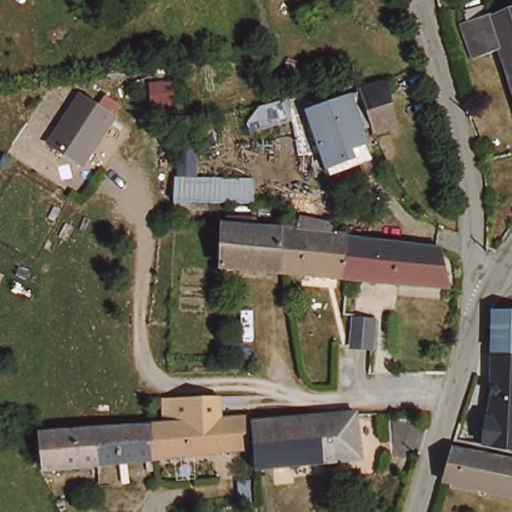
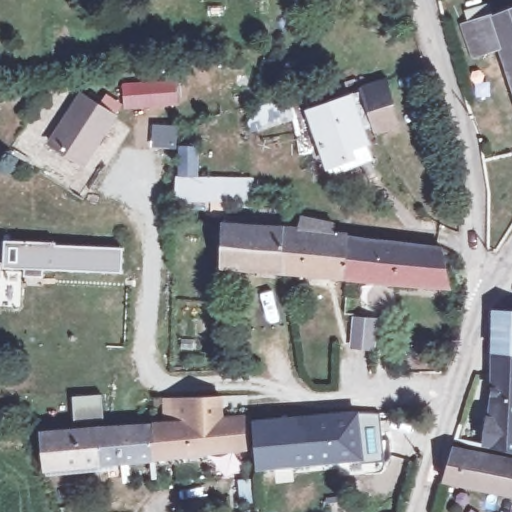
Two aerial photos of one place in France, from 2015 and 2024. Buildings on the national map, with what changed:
unchanged [(465,55),(453,22),(461,20),(457,7),(478,0),(483,0),(486,11),(512,3),(512,94),(495,45),(465,55)]
unchanged [(370,129),(360,87),(360,82),(382,76),(396,124),(371,131),(370,129)]
unchanged [(324,171),(321,162),(303,101),(360,87),(370,129),(362,131),(365,142),(369,160),(324,171)]
unchanged [(115,115),(81,166),(49,142),(82,92),(115,115)]
unchanged [(237,180),(239,204),(163,197),(163,183),(237,180)]
unchanged [(276,221),(278,221),(286,222),(295,222),(299,211),(315,215),(311,277),(272,271),(276,221)]
unchanged [(212,215),(276,221),(272,271),(210,261),(212,215)]
unchanged [(315,215),(335,219),(336,232),(334,281),(311,277),(315,215)]
unchanged [(336,232),(436,254),(442,300),(334,281),(336,232)]
new [(4,239),(56,242),(56,246),(120,249),(120,272),(41,268),(41,276),(23,275),(24,267),(4,267),(4,239)]
unchanged [(512,312),(512,355),(486,354),(484,311),(512,312)]
unchanged [(389,327),(387,355),(363,352),(365,323),(389,327)]
unchanged [(486,354),(512,355),(512,448),(490,445),(486,354)]
unchanged [(147,423),(240,412),(245,452),(155,463),(147,423)]
unchanged [(315,414),(356,412),(363,460),(255,462),(251,419),(283,416),(315,414)]
unchanged [(147,423),(155,463),(96,468),(93,430),(147,423)]
unchanged [(26,438),(93,430),(96,468),(45,472),(26,438)]
unchanged [(443,477),(451,446),(468,449),(512,457),(512,490),(461,480),(443,477)]

